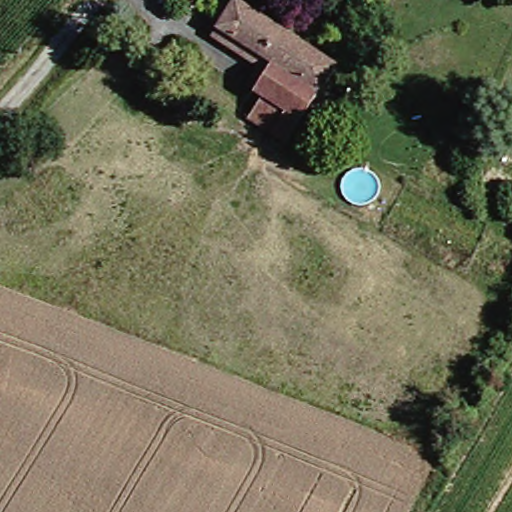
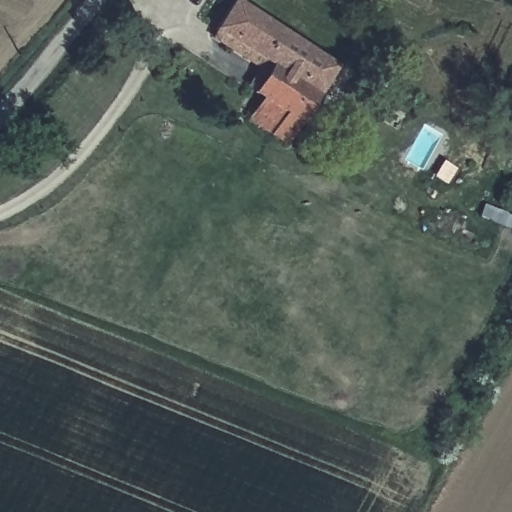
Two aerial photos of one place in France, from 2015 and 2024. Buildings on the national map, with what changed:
unchanged [(283,65),(224,31),(240,3),(344,63),(310,121),(264,95),(283,65)]

